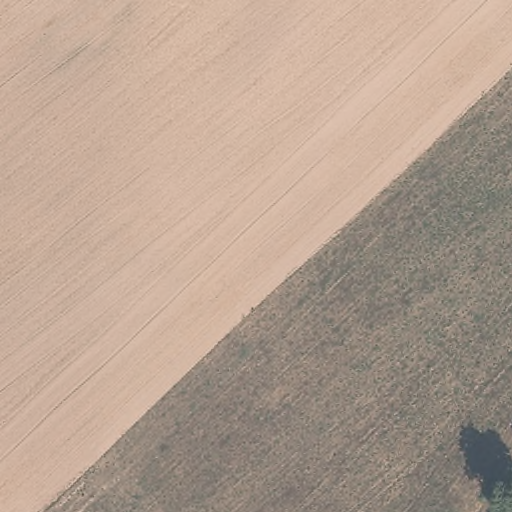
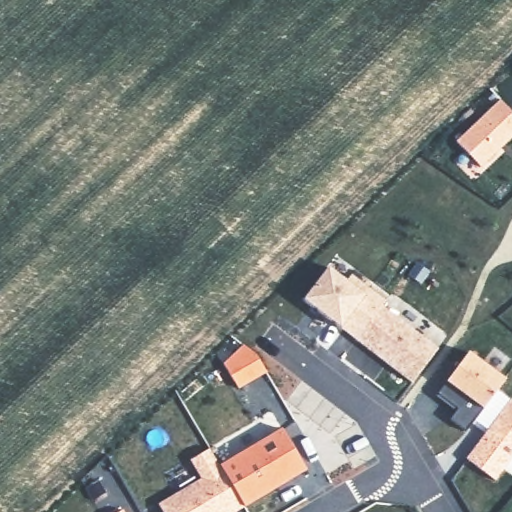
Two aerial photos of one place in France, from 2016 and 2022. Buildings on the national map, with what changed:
new [(500,98),(512,112),(512,137),(480,166),(455,140),(500,98)]
new [(411,381),(340,325),(303,298),(327,267),(347,282),(351,273),(385,300),(380,305),(438,346),(411,381)]
new [(258,358),(267,371),(238,389),(223,362),(243,342),(258,358)]
new [(481,407),(464,428),(448,417),(456,407),(436,393),(448,378),(470,351),(504,377),(481,407)]
new [(496,480),(465,457),(510,397),(512,399),(512,458),(496,480)]
new [(244,506),(233,512),(164,512),(159,502),(200,478),(190,460),(211,448),(222,465),(281,431),(305,469),(244,506)]
new [(123,510),(124,512),(119,512),(123,510)]

